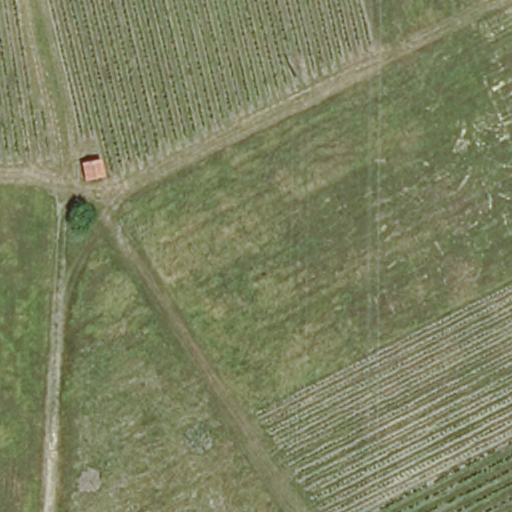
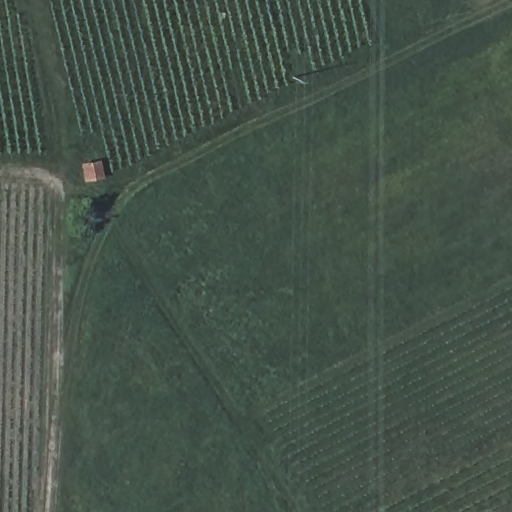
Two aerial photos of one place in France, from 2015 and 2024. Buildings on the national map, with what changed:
unchanged [(104,178),(83,184),(79,165),(99,160),(104,178)]

